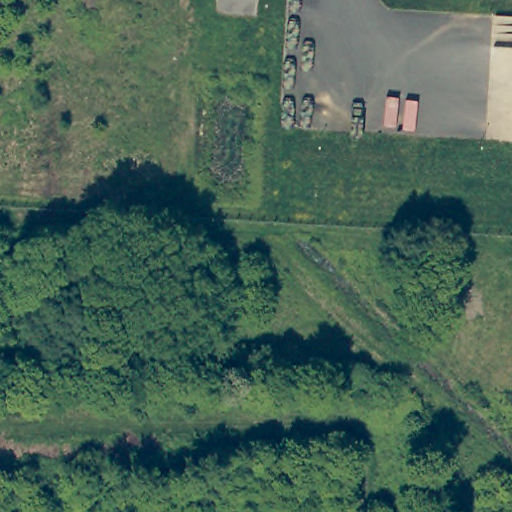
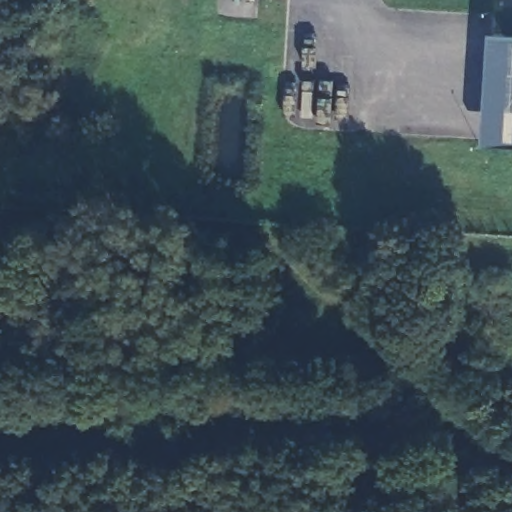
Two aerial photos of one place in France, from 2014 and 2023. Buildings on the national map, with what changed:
new [(489,144),(493,34),(512,35),(512,146),(489,144)]

